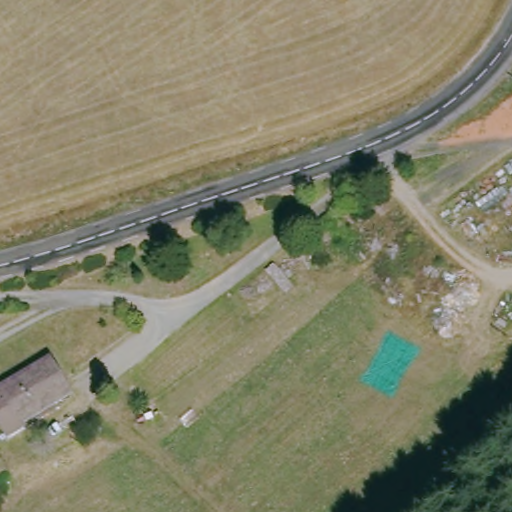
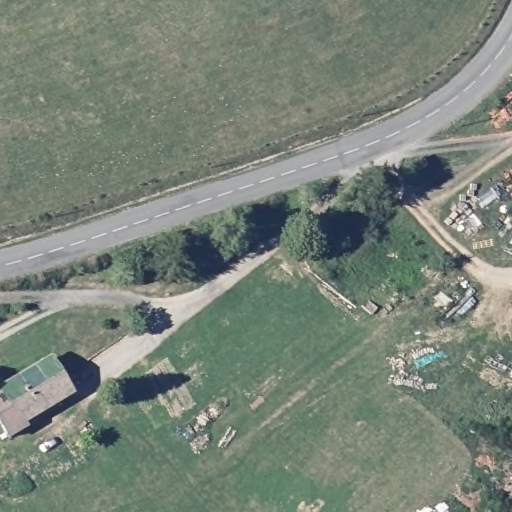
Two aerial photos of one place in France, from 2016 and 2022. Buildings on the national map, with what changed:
unchanged [(49,357),(68,392),(17,421),(21,428),(6,437),(0,426),(0,386),(49,357)]

